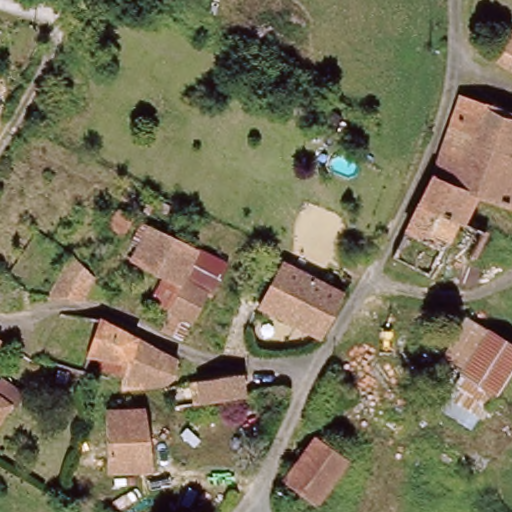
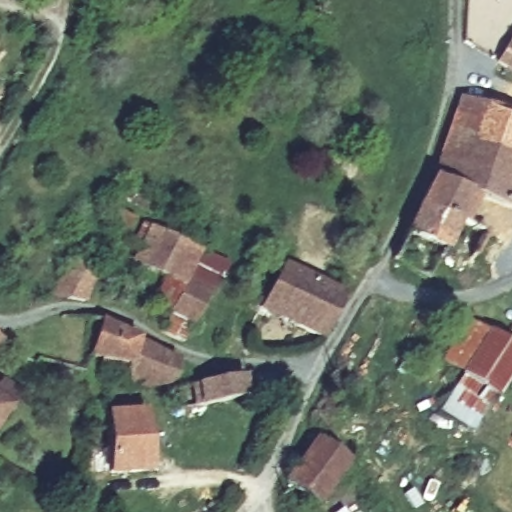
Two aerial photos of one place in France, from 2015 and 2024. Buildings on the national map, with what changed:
unchanged [(494,67),(497,62),(502,52),(504,49),(512,32),(512,76),(494,67)]
unchanged [(493,113),(467,175),(439,162),(464,102),(493,113)]
unchanged [(467,175),(493,113),(512,120),(512,216),(475,202),(460,228),(416,210),(432,184),(439,162),(467,175)]
unchanged [(460,228),(482,237),(471,263),(441,251),(422,281),(382,262),(416,210),(460,228)]
unchanged [(198,247),(184,283),(164,275),(131,262),(147,226),(198,247)]
unchanged [(164,275),(184,283),(196,252),(225,266),(191,329),(150,307),(164,275)]
unchanged [(70,254),(95,278),(83,303),(53,293),(70,254)]
unchanged [(324,341),(258,310),(280,263),(352,292),(324,341)]
unchanged [(123,397),(124,387),(96,375),(96,364),(84,363),(93,336),(96,321),(129,337),(179,357),(178,371),(174,371),(171,387),(123,397)]
unchanged [(437,413),(458,378),(439,364),(463,322),(512,347),(512,370),(471,435),(437,413)]
unchanged [(0,342),(5,346),(0,351),(0,342)]
unchanged [(203,404),(199,377),(243,368),(247,395),(203,404)]
unchanged [(0,433),(0,396),(17,407),(0,433)]
unchanged [(138,470),(109,471),(104,417),(138,412),(144,442),(150,468),(138,470)]
unchanged [(354,468),(316,511),(278,478),(318,437),(354,468)]

